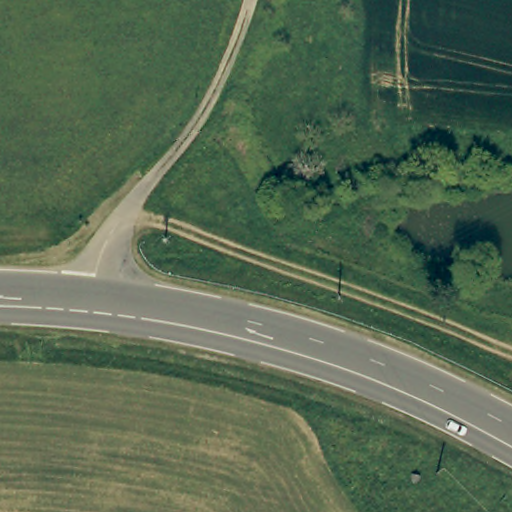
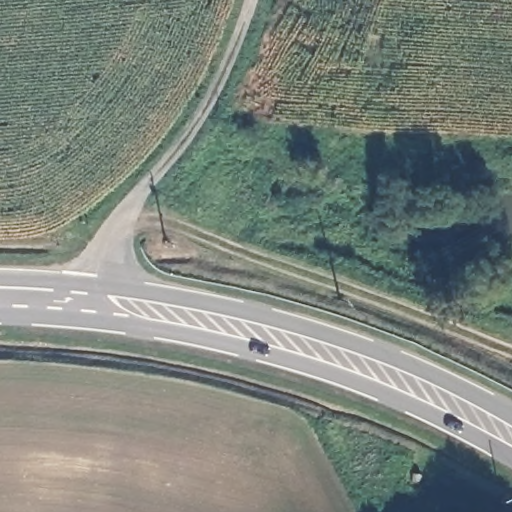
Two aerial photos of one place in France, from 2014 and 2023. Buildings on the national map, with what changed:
[]

